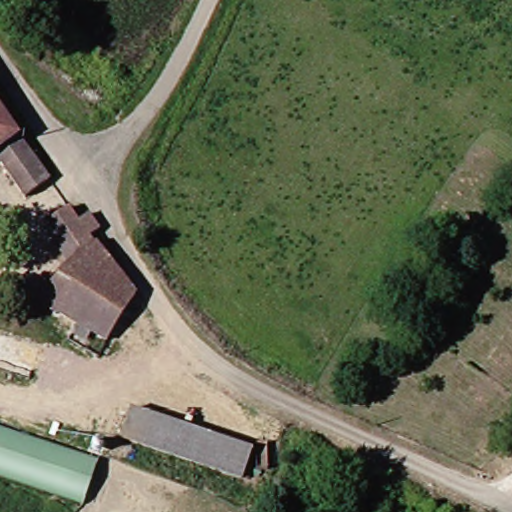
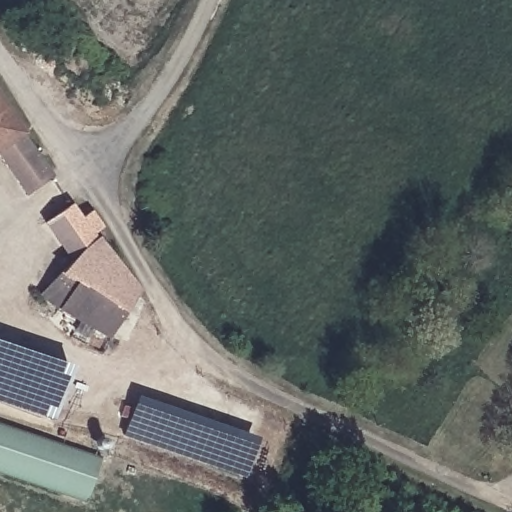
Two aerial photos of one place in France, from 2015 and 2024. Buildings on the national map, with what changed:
unchanged [(53,171),(30,189),(0,151),(0,103),(53,171)]
unchanged [(74,262),(44,217),(64,197),(87,222),(97,238),(74,262)]
unchanged [(137,295),(114,340),(96,333),(91,343),(76,334),(80,324),(60,315),(62,311),(47,299),(63,283),(63,278),(74,262),(97,238),(137,295)]
new [(67,365),(49,420),(0,403),(0,343),(67,365)]
unchanged [(258,444),(253,470),(129,436),(136,409),(258,444)]
unchanged [(102,455),(88,499),(0,471),(0,423),(102,455)]

